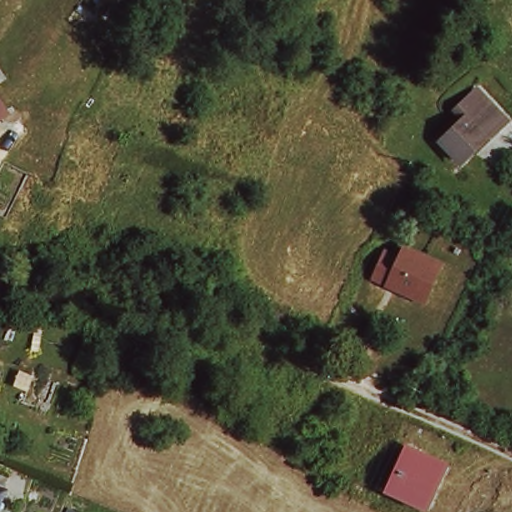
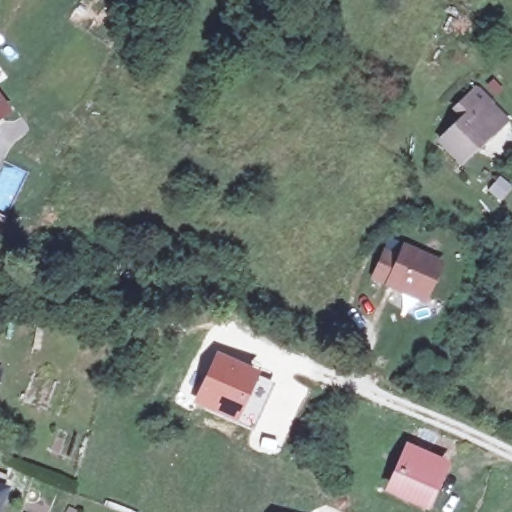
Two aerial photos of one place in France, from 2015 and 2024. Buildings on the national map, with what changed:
unchanged [(454,156),(435,136),(458,114),(451,105),(472,85),(495,110),(502,117),(469,150),(465,145),(454,156)]
unchanged [(0,119),(0,101),(8,114),(0,119)]
unchanged [(400,258),(404,247),(440,264),(423,300),(373,277),(385,251),(400,258)]
new [(215,351),(260,371),(238,422),(192,403),(215,351)]
unchanged [(407,448),(438,463),(430,484),(425,482),(420,496),(390,484),(407,448)]
unchanged [(0,492),(0,478),(5,480),(0,492)]
unchanged [(74,507),(72,512),(60,512),(65,503),(74,507)]

